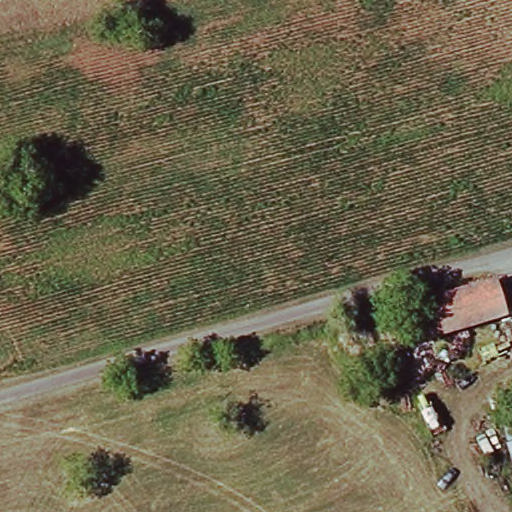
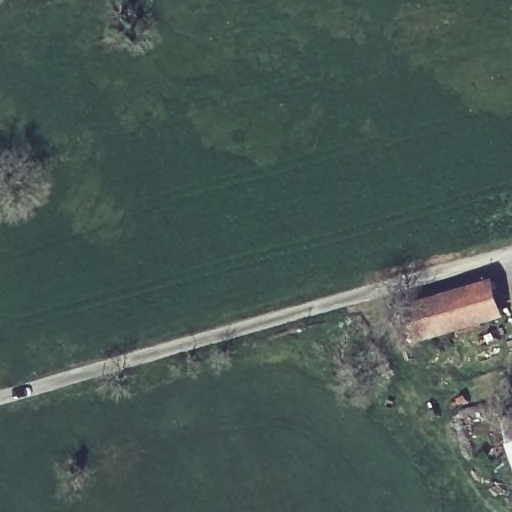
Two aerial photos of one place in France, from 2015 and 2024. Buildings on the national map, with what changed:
unchanged [(422,346),(411,313),(493,286),(504,319),(422,346)]
unchanged [(502,427),(512,424),(512,455),(509,446),(502,427)]

